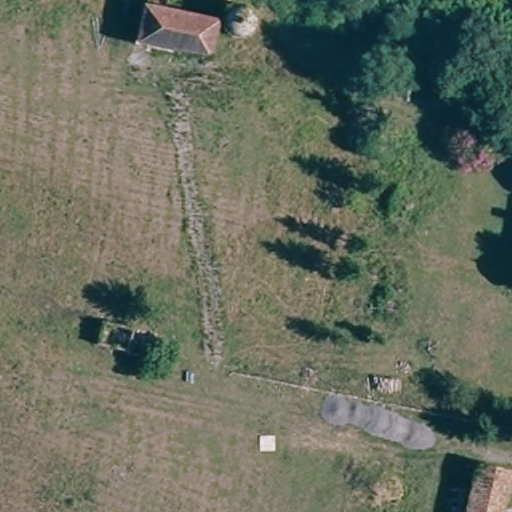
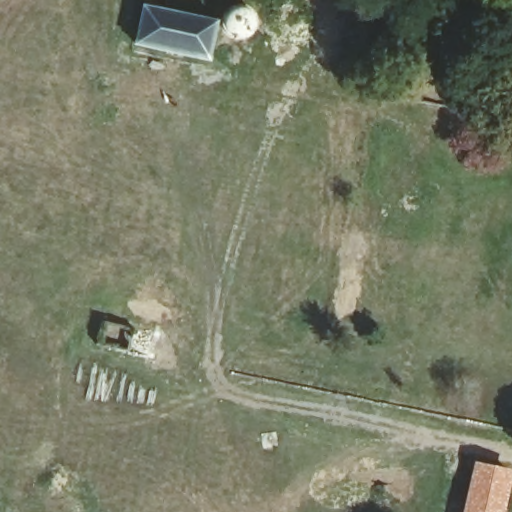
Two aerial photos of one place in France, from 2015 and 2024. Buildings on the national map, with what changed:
unchanged [(207,56),(132,41),(141,0),(216,16),(207,56)]
unchanged [(257,25),(255,30),(246,35),(237,35),(230,31),(227,28),(224,21),(224,14),(226,9),(230,5),(236,1),(246,1),(252,4),(258,10),(260,17),(257,25)]
unchanged [(135,351),(135,348),(141,325),(162,330),(156,355),(135,351)]
unchanged [(499,512),(463,512),(475,466),(508,474),(499,512)]

